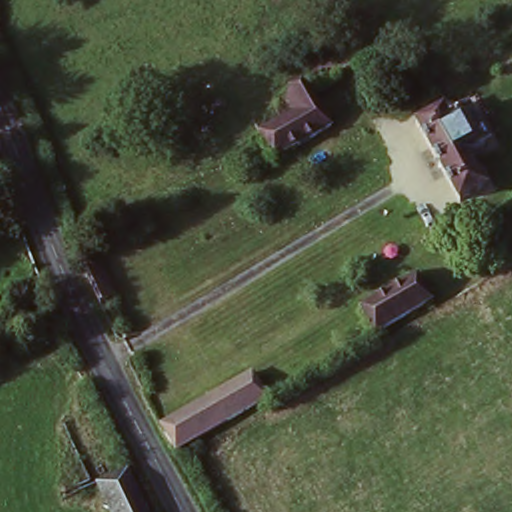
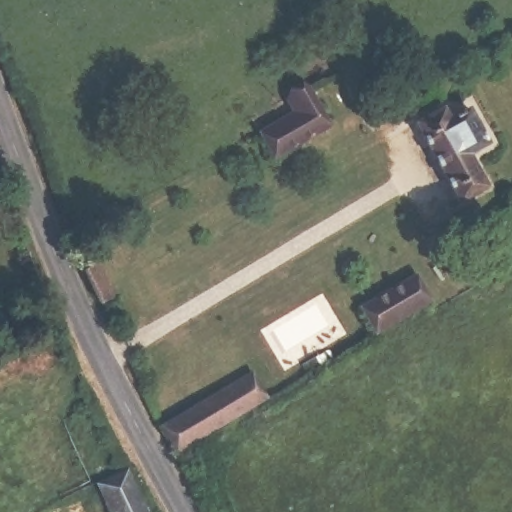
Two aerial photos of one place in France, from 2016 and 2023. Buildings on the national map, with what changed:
unchanged [(338,131),(282,161),(269,136),(303,118),(296,104),(318,91),(338,131)]
unchanged [(440,110),(447,124),(469,114),(493,156),(473,165),(487,192),(462,206),(415,122),(440,110)]
unchanged [(100,269),(114,295),(97,302),(92,292),(84,275),(100,269)]
unchanged [(432,302),(377,334),(364,312),(421,280),(432,302)]
unchanged [(162,428),(253,377),(265,399),(174,450),(162,428)]
unchanged [(117,512),(105,486),(127,476),(144,512),(117,512)]

